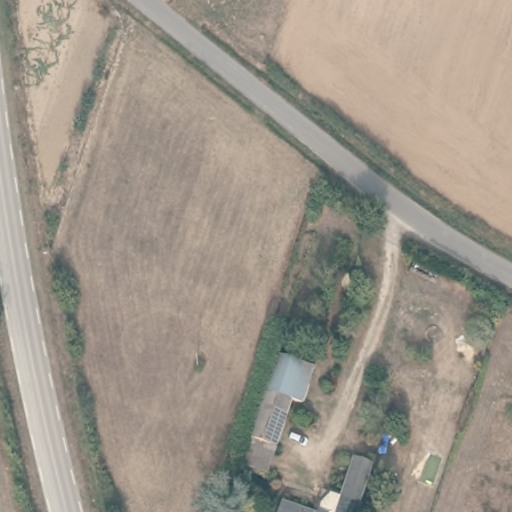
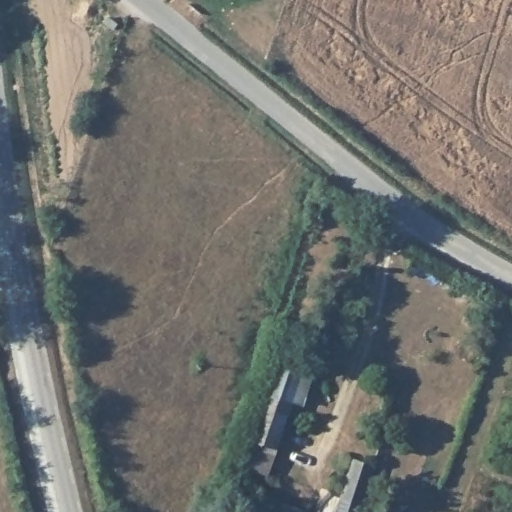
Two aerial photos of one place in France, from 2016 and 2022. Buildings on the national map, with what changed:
unchanged [(237,466),(246,442),(264,396),(276,360),(312,371),(299,407),(290,403),(273,451),(264,475),(237,466)]
unchanged [(330,498),(340,502),(353,464),(368,469),(357,505),(355,512),(318,512),(319,508),(330,498)]
unchanged [(295,512),(278,512),(280,506),(295,512)]

